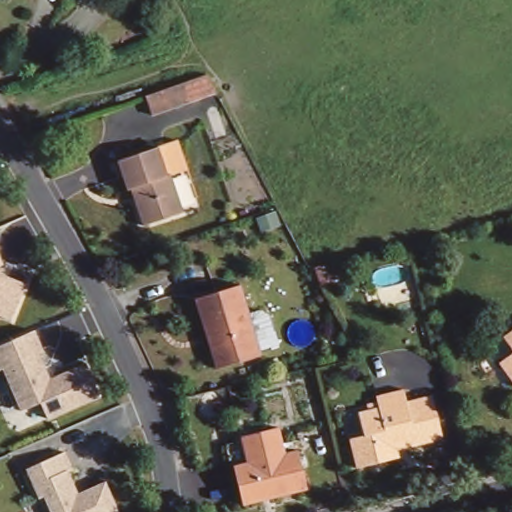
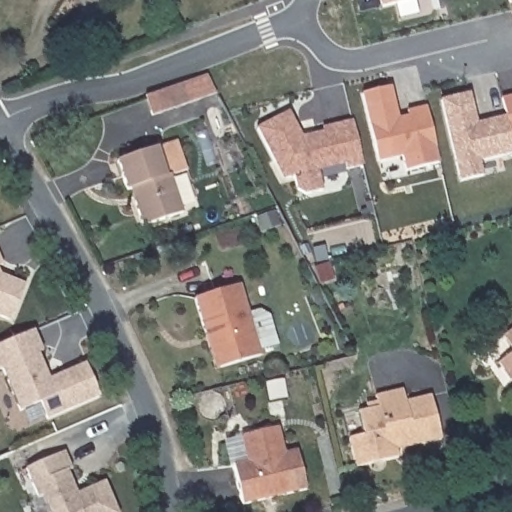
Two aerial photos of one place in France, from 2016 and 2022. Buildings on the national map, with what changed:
new [(379,5),(378,0),(401,0),(379,5)]
new [(508,0),(512,0),(512,2),(508,3),(508,0)]
unchanged [(214,95),(154,116),(145,96),(204,76),(214,95)]
new [(396,118),(406,116),(405,111),(424,106),(437,162),(403,170),(400,156),(375,162),(359,93),(388,87),(396,118)]
new [(486,121),(504,117),(509,137),(512,148),(512,153),(478,161),(481,176),(458,181),(439,100),(468,94),(475,124),(486,121)]
new [(504,117),(500,99),(512,96),(512,136),(509,137),(504,117)]
new [(270,161),(253,128),(285,111),(299,136),(306,135),(320,131),(319,127),(349,120),(360,164),(343,168),(342,163),(315,170),(319,189),(302,194),(293,189),(290,176),(284,177),(279,178),(270,161)]
unchanged [(155,152),(175,146),(184,175),(168,180),(180,217),(141,231),(129,196),(125,197),(115,166),(155,152)]
unchanged [(2,268),(0,269),(0,262),(2,268)]
unchanged [(323,265),(328,281),(314,286),(309,269),(323,265)]
unchanged [(22,286),(11,323),(0,319),(0,278),(22,286)]
unchanged [(202,328),(192,298),(239,283),(247,307),(256,305),(263,310),(271,339),(257,343),(259,352),(221,364),(214,366),(202,328)]
unchanged [(512,331),(512,353),(501,340),(512,331)]
unchanged [(0,373),(0,346),(32,333),(42,355),(39,357),(48,380),(87,363),(99,397),(44,421),(38,404),(16,413),(0,373)]
unchanged [(512,358),(512,379),(501,366),(512,358)]
unchanged [(370,408),(369,402),(380,399),(379,394),(403,389),(405,401),(434,395),(443,438),(396,449),(398,456),(356,466),(349,436),(365,432),(360,410),(370,408)]
unchanged [(244,464),(239,445),(246,435),(274,428),(282,455),(293,453),(302,491),(240,507),(230,468),(244,464)]
unchanged [(37,500),(26,469),(64,451),(71,470),(67,472),(78,493),(106,482),(119,512),(49,512),(42,498),(37,500)]

